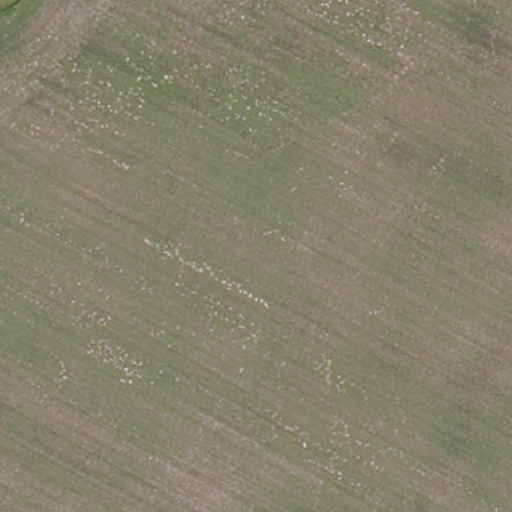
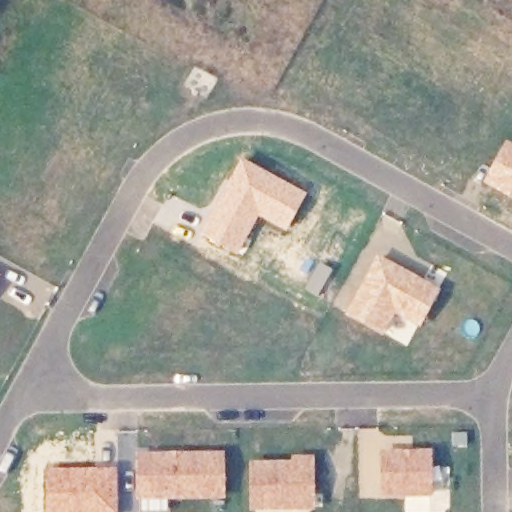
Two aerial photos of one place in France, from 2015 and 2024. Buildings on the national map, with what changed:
new [(512,141),(512,199),(482,183),(506,138),(512,141)]
new [(242,157),(306,193),(286,232),(258,217),(237,256),(198,236),(242,157)]
new [(438,291),(420,322),(394,308),(383,330),(347,312),(377,254),(438,291)]
new [(318,262),(332,269),(318,297),(304,290),(318,262)]
new [(136,449),(225,450),(226,500),(135,500),(136,449)]
new [(430,449),(431,496),(380,498),(379,451),(430,449)]
new [(252,507),(252,466),(311,463),(312,507),(252,507)]
new [(117,467),(118,512),(44,512),(43,467),(117,467)]

